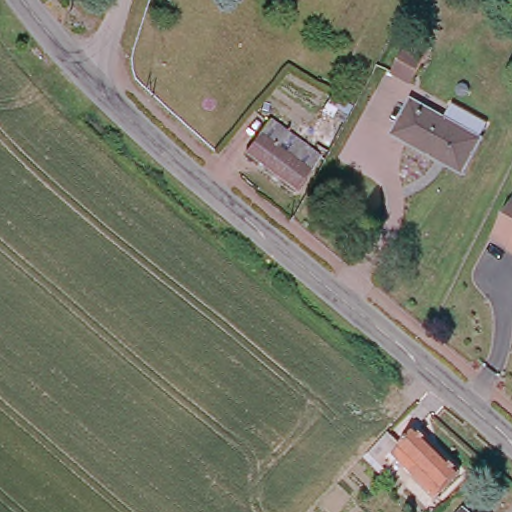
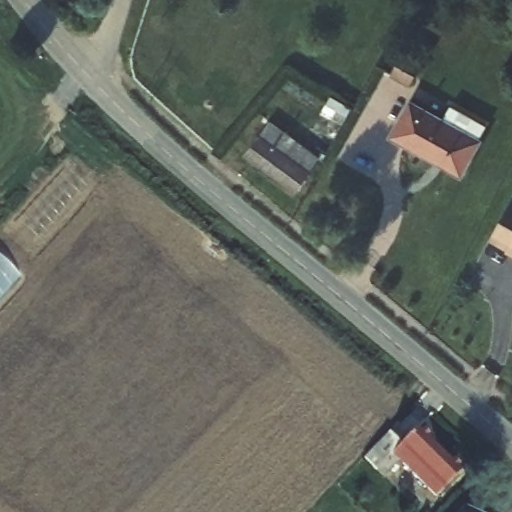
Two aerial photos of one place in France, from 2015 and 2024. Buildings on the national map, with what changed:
unchanged [(391,71),(410,39),(430,51),(410,82),(391,71)]
unchanged [(472,143),(476,145),(457,179),(401,148),(403,145),(388,137),(405,106),(438,125),(447,111),(480,130),(472,143)]
unchanged [(295,189),(247,152),(272,119),(320,157),(295,189)]
unchanged [(506,254),(508,251),(490,241),(512,204),(512,257),(506,254)]
new [(0,297),(0,259),(20,276),(0,297)]
unchanged [(391,458),(385,466),(372,454),(390,432),(403,444),(417,428),(473,486),(446,512),(445,512),(391,458)]

